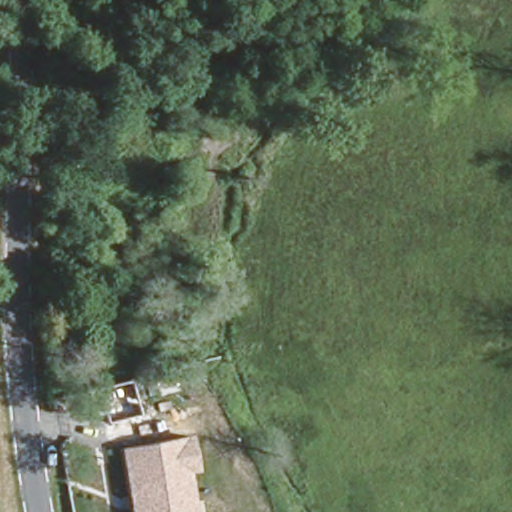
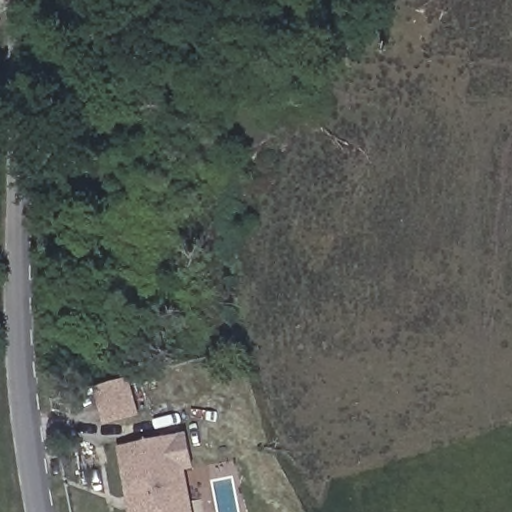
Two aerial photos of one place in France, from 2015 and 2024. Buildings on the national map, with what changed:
new [(139,415),(107,425),(95,390),(127,380),(139,415)]
unchanged [(195,512),(128,512),(118,445),(191,433),(197,471),(188,472),(195,512)]

